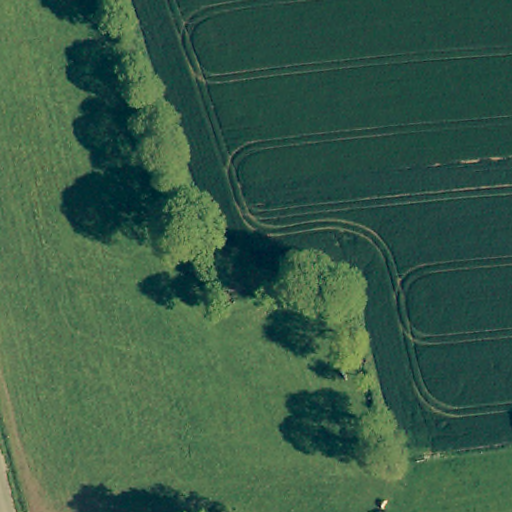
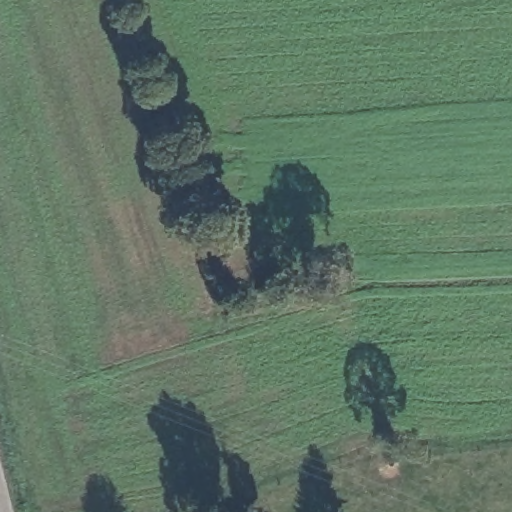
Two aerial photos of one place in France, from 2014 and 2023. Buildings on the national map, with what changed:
[]

